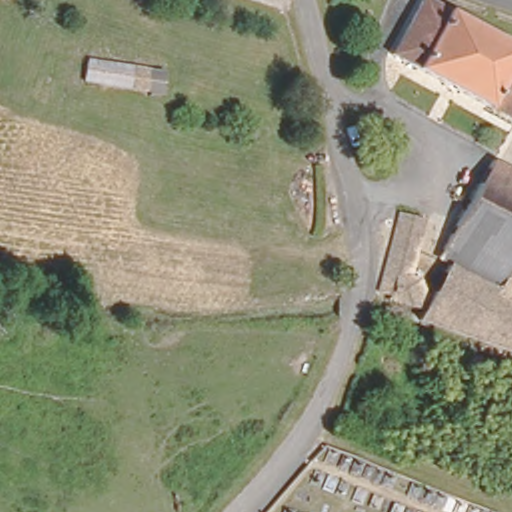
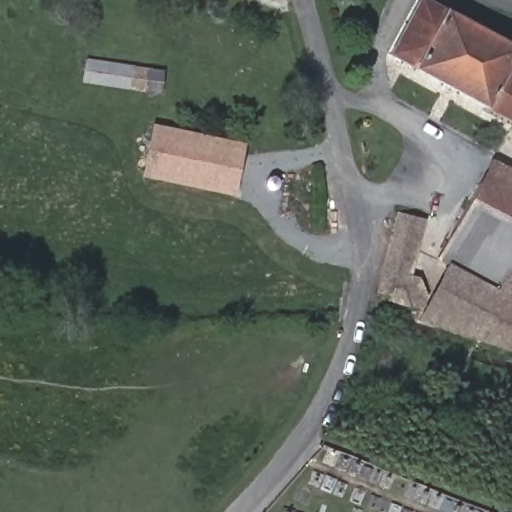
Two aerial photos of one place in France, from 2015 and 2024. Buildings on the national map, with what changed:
unchanged [(422,0),(432,0),(512,45),(512,121),(392,54),(422,0)]
unchanged [(161,93),(143,91),(83,83),(85,62),(146,69),(163,71),(161,93)]
new [(141,176),(153,124),(245,142),(234,195),(141,176)]
unchanged [(453,268),(439,260),(493,165),(512,175),(512,303),(497,295),(473,340),(423,322),(453,268)]
unchanged [(426,224),(412,278),(419,281),(429,298),(425,313),(390,304),(391,298),(379,294),(402,215),(426,224)]
unchanged [(512,303),(512,354),(473,340),(497,295),(512,303)]

